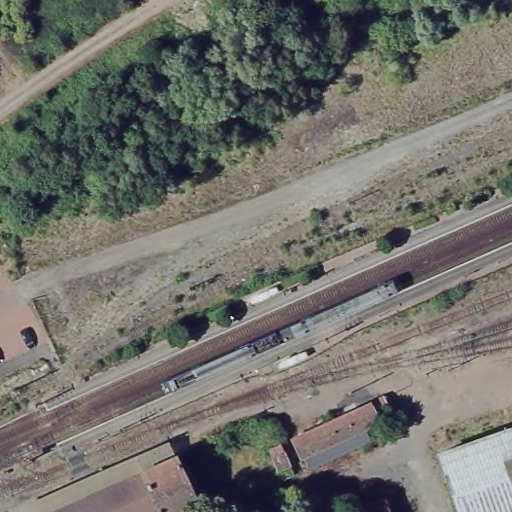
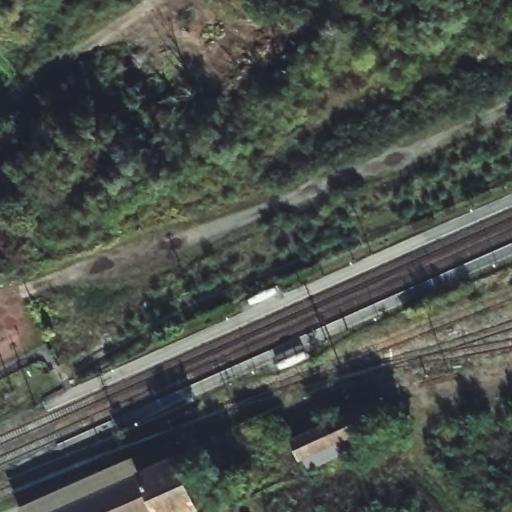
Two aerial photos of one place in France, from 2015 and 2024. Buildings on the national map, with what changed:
unchanged [(383,399),(392,418),(365,429),(370,441),(309,468),(304,457),(300,459),(292,439),(383,399)]
demolished [(437,456),(512,429),(512,512),(458,512),(437,456)]
unchanged [(17,508),(166,440),(175,457),(142,472),(55,512),(19,512),(17,508)]
unchanged [(280,445),(290,467),(277,473),(276,473),(266,451),(280,445)]
unchanged [(142,472),(175,457),(198,508),(189,512),(55,512),(142,472)]
demolished [(372,503),(374,512),(339,512),(372,503)]

